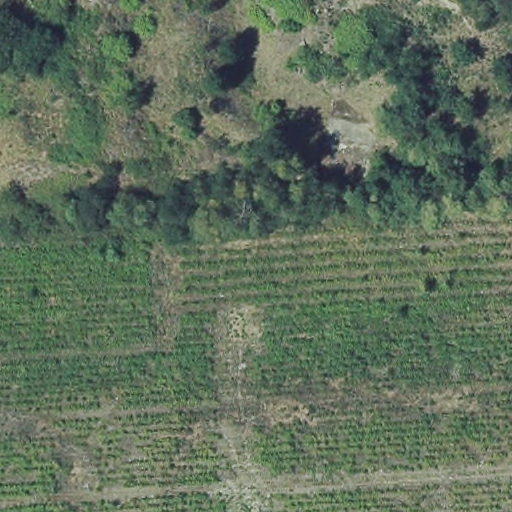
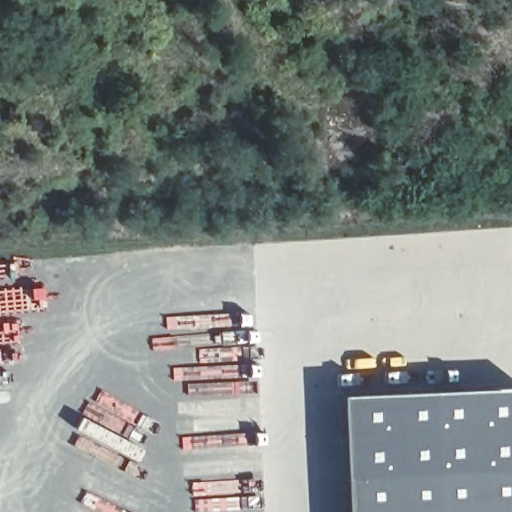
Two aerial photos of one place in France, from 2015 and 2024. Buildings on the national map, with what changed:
new [(340,395),(512,388),(512,468),(342,475),(340,395)]
unchanged [(343,512),(342,475),(512,468),(512,512),(343,512)]

